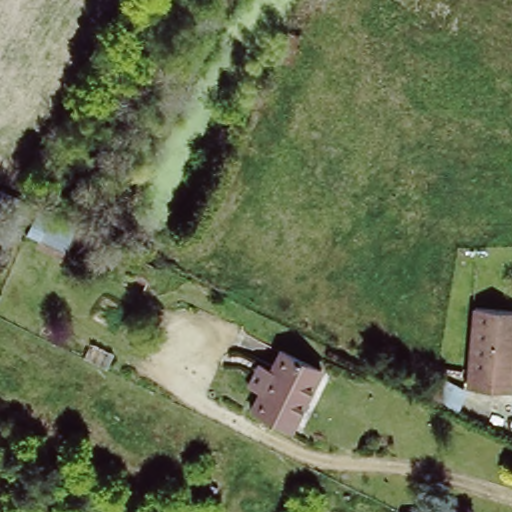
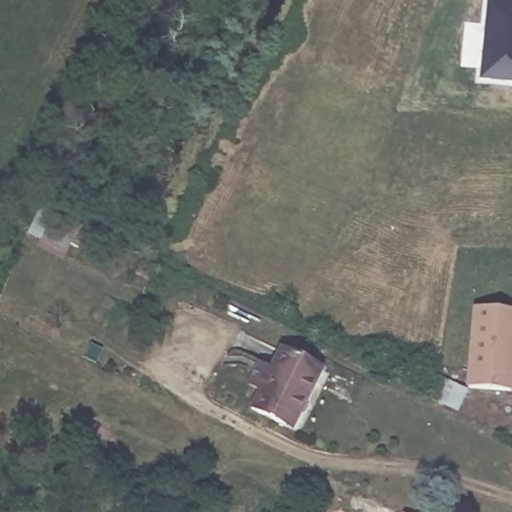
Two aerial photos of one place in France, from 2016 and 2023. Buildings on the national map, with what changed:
new [(480,82),(486,20),(488,2),(493,3),(512,5),(512,85),(480,82)]
unchanged [(73,255),(67,252),(65,256),(38,242),(26,235),(40,207),(55,215),(82,229),(87,231),(73,255)]
unchanged [(512,315),(512,359),(509,392),(468,390),(473,312),(512,315)]
unchanged [(322,371),(297,422),(291,433),(254,415),(262,397),(252,392),(261,373),(271,378),(283,351),(322,371)]

